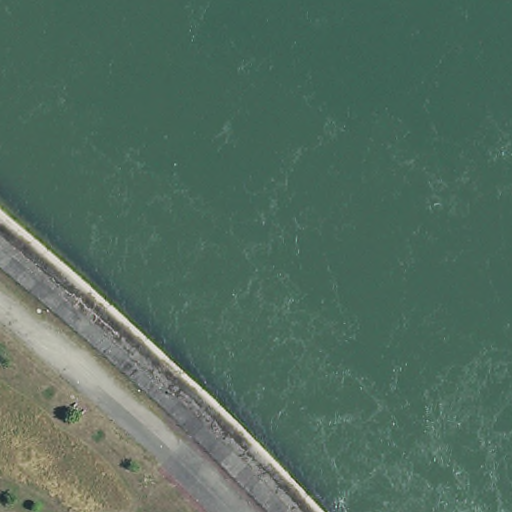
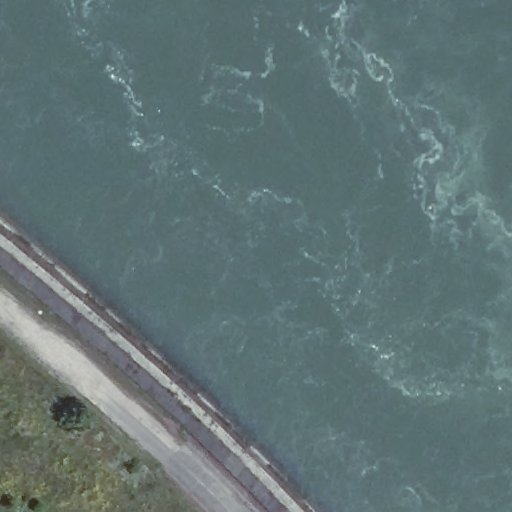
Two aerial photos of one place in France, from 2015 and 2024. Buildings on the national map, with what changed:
[]

